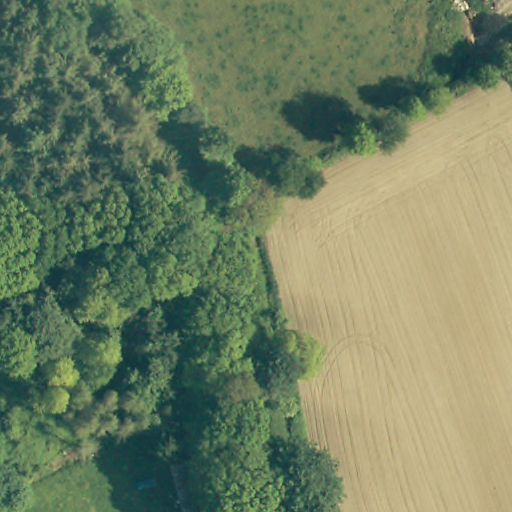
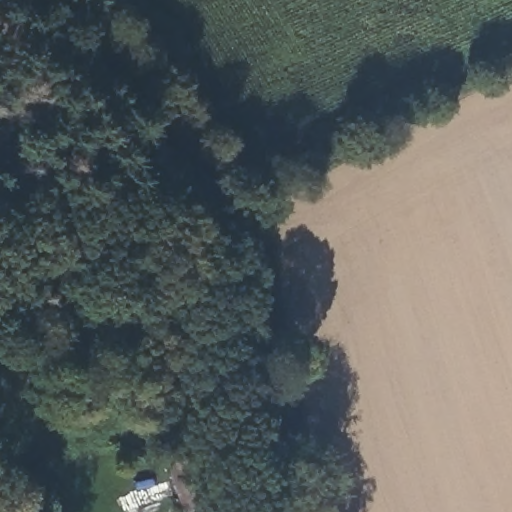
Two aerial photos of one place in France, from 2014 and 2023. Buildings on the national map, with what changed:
unchanged [(193,447),(203,496),(182,501),(173,454),(193,447)]

